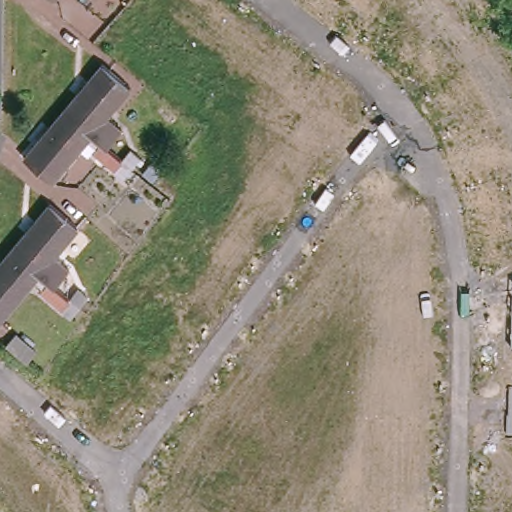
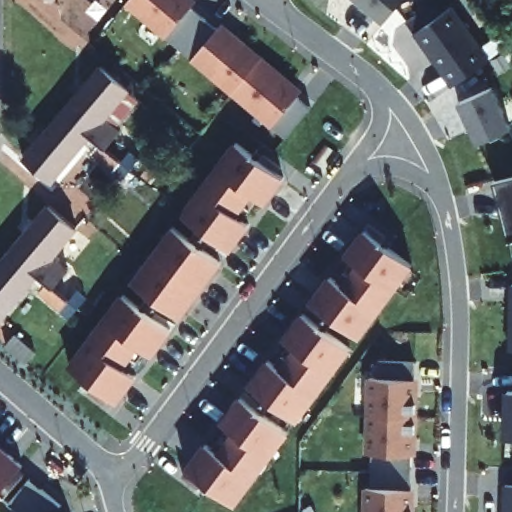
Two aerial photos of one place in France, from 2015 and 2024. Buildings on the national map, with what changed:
new [(242,46),(245,42),(280,70),(276,75),(300,92),(297,96),(312,106),(288,136),(129,3),(131,0),(187,0),(242,46)]
unchanged [(354,0),(401,0),(382,23),(354,0)]
new [(455,4),(493,57),(454,85),(416,32),(455,4)]
demolished [(94,29),(86,38),(67,23),(74,13),(94,29)]
unchanged [(107,65),(135,88),(100,130),(110,138),(112,134),(134,152),(127,160),(69,112),(107,65)]
new [(495,85),(512,124),(512,128),(481,142),(470,116),(468,116),(461,101),(495,85)]
unchanged [(127,160),(118,169),(97,152),(101,148),(92,140),(57,181),(30,158),(69,112),(127,160)]
new [(285,177),(266,204),(255,195),(240,216),(252,224),(234,250),(182,214),(235,140),(285,177)]
new [(496,179),(512,176),(512,238),(496,179)]
demolished [(72,205),(80,197),(98,212),(91,221),(72,205)]
unchanged [(12,250),(51,203),(79,226),(44,269),(53,276),(57,271),(79,289),(70,299),(12,250)]
demolished [(87,236),(96,225),(117,242),(107,253),(87,236)]
new [(222,263),(184,316),(134,281),(174,225),(222,263)]
new [(415,264),(363,335),(312,300),(330,274),(342,283),(358,261),(347,253),(364,228),(415,264)]
unchanged [(70,299),(62,308),(42,290),(44,286),(35,279),(0,319),(0,264),(12,250),(70,299)]
unchanged [(512,286),(512,351),(511,350),(512,286)]
new [(172,331),(153,356),(142,348),(127,367),(140,375),(120,404),(69,367),(122,293),(172,331)]
new [(352,348),(300,420),(249,383),(269,357),(280,365),(295,344),(284,336),(303,311),(352,348)]
unchanged [(7,340),(17,328),(39,345),(29,358),(7,340)]
new [(418,395),(417,437),(412,437),(412,507),(415,506),(415,512),(371,512),(371,506),(367,506),(367,487),(374,487),(374,454),(368,453),(367,434),(375,434),(375,415),(376,397),(370,396),(370,378),(379,378),(379,361),(415,362),(415,395),(418,395)]
unchanged [(509,390),(512,391),(512,436),(506,435),(509,390)]
new [(291,432),(238,505),(187,468),(206,441),(215,450),(234,428),(222,419),(242,394),(291,432)]
new [(0,492),(0,445),(22,466),(0,492)]
new [(62,505),(44,512),(19,512),(10,503),(32,478),(62,505)]
new [(505,512),(506,484),(512,484),(512,512),(505,512)]

